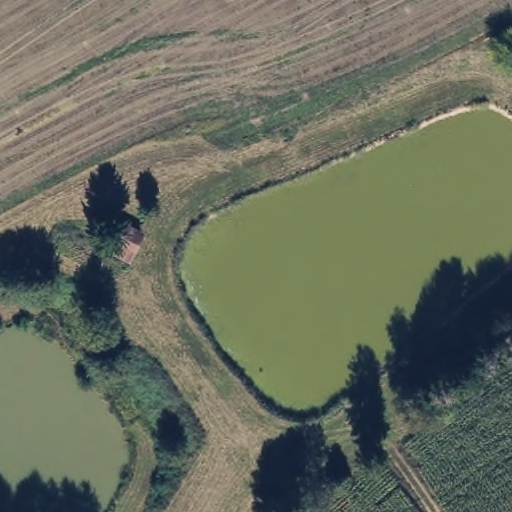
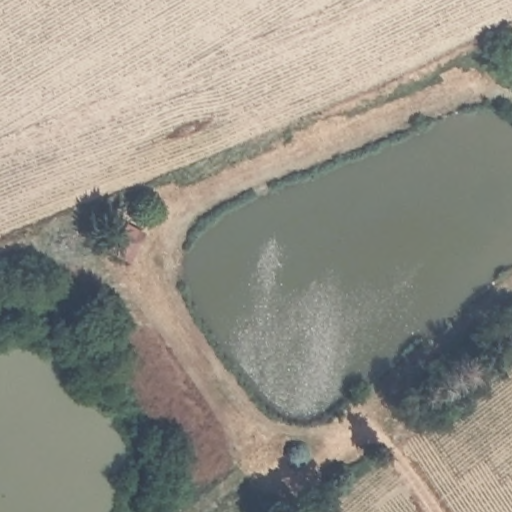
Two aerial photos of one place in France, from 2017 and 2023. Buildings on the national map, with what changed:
unchanged [(105,253),(126,222),(148,234),(132,265),(105,253)]

